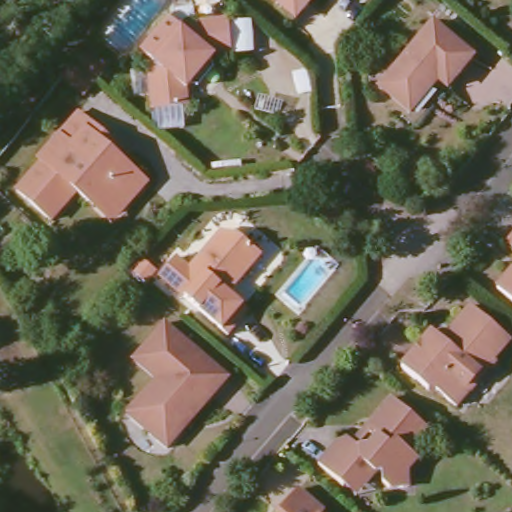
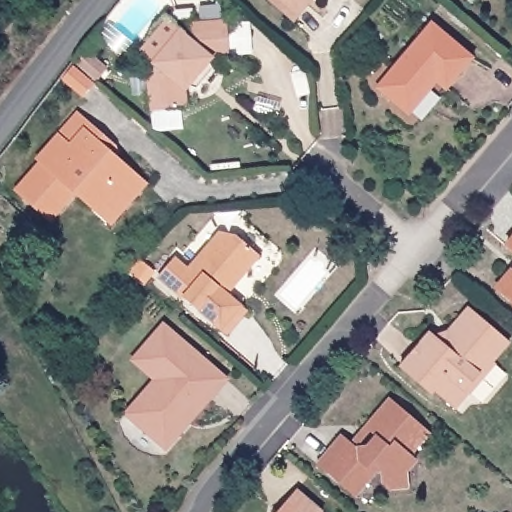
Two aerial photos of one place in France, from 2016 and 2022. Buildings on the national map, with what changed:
unchanged [(268,0),(311,0),(291,21),(268,0)]
unchanged [(149,69),(155,62),(141,51),(162,24),(167,18),(181,29),(186,24),(228,19),(231,55),(215,58),(187,90),(189,107),(153,110),(149,69)]
unchanged [(398,70),(438,24),(478,59),(454,88),(440,77),(436,83),(438,85),(416,111),(390,90),(385,86),(398,70)]
unchanged [(74,61),(95,79),(83,92),(63,74),(74,61)]
unchanged [(77,192),(52,219),(18,190),(43,162),(40,160),(61,136),(80,114),(91,124),(118,146),(120,159),(148,183),(122,214),(113,224),(94,207),(77,192)]
unchanged [(176,262),(190,272),(217,242),(223,235),(237,239),(263,260),(236,290),(232,289),(226,294),(250,314),(229,337),(161,279),(176,262)]
unchanged [(508,245),(512,240),(512,249),(508,245)]
unchanged [(499,290),(512,275),(512,301),(499,290)]
unchanged [(509,342),(492,361),(496,364),(484,379),(480,375),(467,390),(470,392),(455,408),(435,391),(425,391),(399,367),(430,333),(433,335),(448,330),(469,307),(509,342)]
unchanged [(185,418),(182,422),(189,429),(171,449),(134,418),(134,413),(161,381),(138,361),(170,326),(226,376),(191,418),(185,418)]
unchanged [(322,467),(346,439),(361,453),(373,452),(381,441),(371,432),(395,404),(433,438),(424,449),(420,446),(411,457),(419,464),(407,476),(409,491),(391,493),(383,486),(382,475),(376,476),(367,487),(358,498),(346,487),(322,467)]
unchanged [(296,489),(323,512),(276,512),(296,489)]

